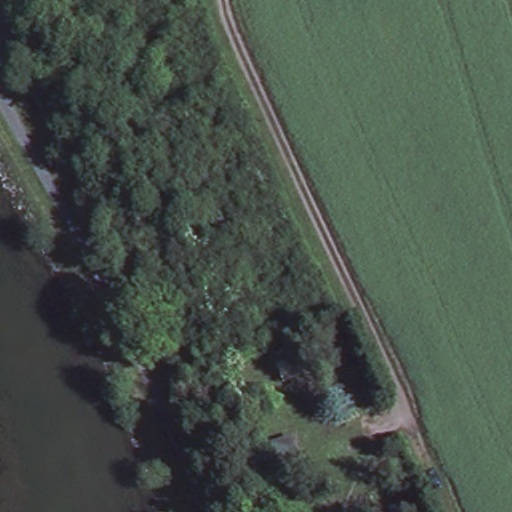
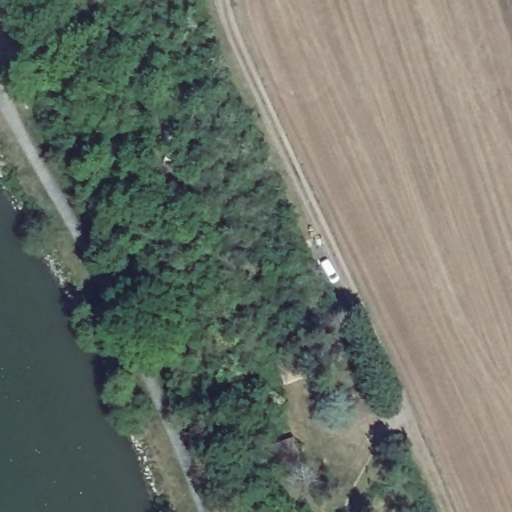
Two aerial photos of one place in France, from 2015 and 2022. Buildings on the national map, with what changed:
unchanged [(13,64),(1,35),(20,27),(31,23),(38,39),(43,52),(13,64)]

